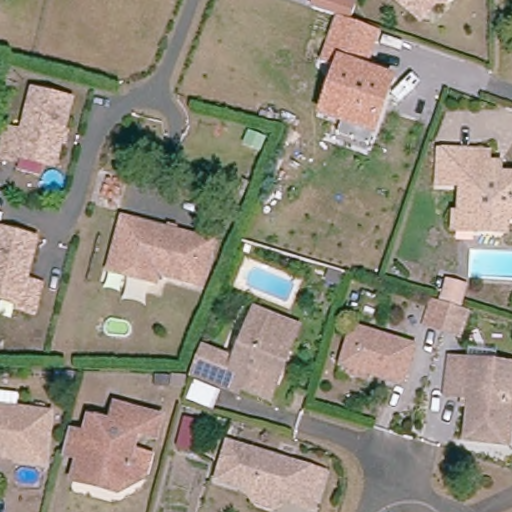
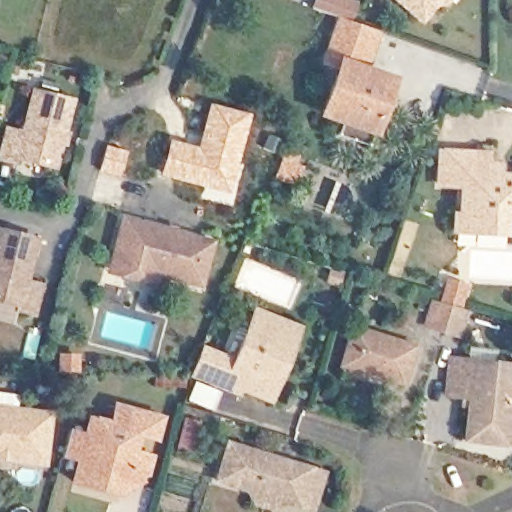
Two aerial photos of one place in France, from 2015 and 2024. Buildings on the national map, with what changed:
unchanged [(311,7),(313,0),(354,0),(348,20),(311,7)]
unchanged [(448,5),(435,8),(429,12),(419,25),(391,1),(391,0),(453,0),(448,5)]
unchanged [(395,76),(376,135),(371,133),(366,144),(338,135),(342,124),(317,116),(333,70),(320,65),(336,16),(348,20),(380,31),(368,66),(395,76)]
unchanged [(19,128),(29,87),(75,98),(57,170),(21,161),(19,165),(0,160),(0,123),(19,128)]
new [(168,138),(195,145),(207,102),(250,114),(229,196),(158,175),(168,138)]
new [(104,144),(130,151),(122,179),(97,172),(104,144)]
new [(282,152),(306,160),(296,187),(272,179),(282,152)]
unchanged [(458,216),(458,183),(437,182),(437,153),(484,155),(484,164),(499,164),(499,174),(512,174),(512,218),(504,217),(502,221),(502,227),(495,233),(476,232),(452,232),(452,215),(458,216)]
unchanged [(110,269),(122,225),(214,247),(201,293),(158,283),(156,293),(123,286),(107,281),(110,269)]
unchanged [(40,237),(30,278),(45,281),(37,317),(14,312),(16,306),(0,302),(0,227),(40,237)]
unchanged [(448,266),(481,276),(472,306),(439,296),(448,266)]
unchanged [(442,337),(426,332),(434,307),(450,312),(468,317),(461,342),(442,337)]
unchanged [(225,395),(229,384),(217,380),(213,390),(185,378),(198,345),(215,350),(226,322),(243,327),(250,310),(297,326),(290,342),(296,345),(276,402),(258,395),(241,389),(237,400),(225,395)]
unchanged [(413,351),(401,389),(341,371),(354,333),(413,351)]
unchanged [(505,439),(463,436),(464,392),(446,391),(448,356),(467,357),(494,358),(512,360),(512,395),(507,395),(505,439)]
unchanged [(214,395),(209,411),(188,404),(194,388),(214,395)]
unchanged [(73,483),(78,465),(61,460),(71,430),(87,433),(91,422),(110,427),(115,407),(157,418),(153,438),(137,435),(129,465),(137,486),(121,497),(117,496),(92,488),(73,483)]
unchanged [(54,419),(47,466),(14,460),(0,458),(0,410),(54,419)]
unchanged [(313,511),(298,506),(219,483),(230,447),(310,468),(324,473),(313,511)]

